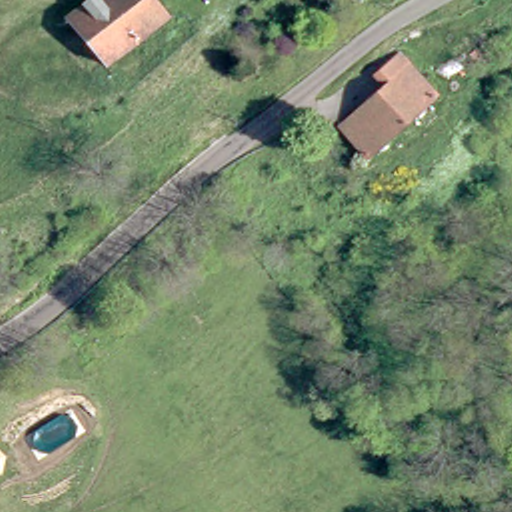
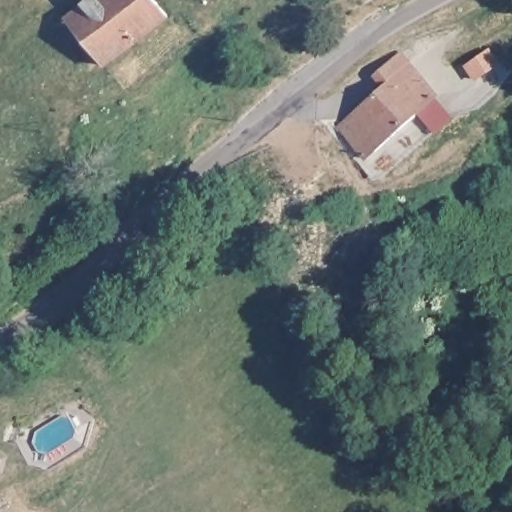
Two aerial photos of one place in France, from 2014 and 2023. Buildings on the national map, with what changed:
unchanged [(104,66),(63,18),(85,0),(151,0),(164,16),(104,66)]
unchanged [(439,97),(373,156),(341,120),(385,80),(373,66),(396,46),(439,97)]

